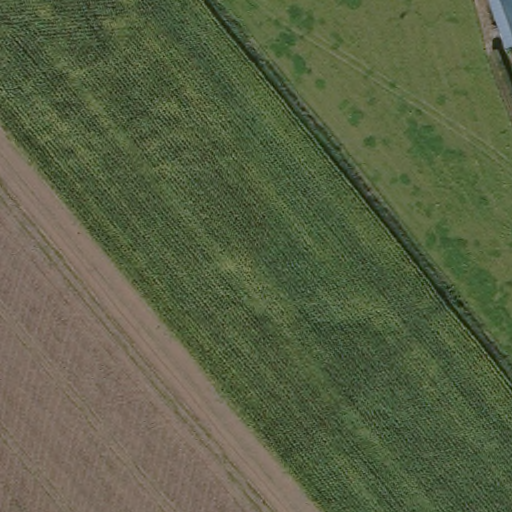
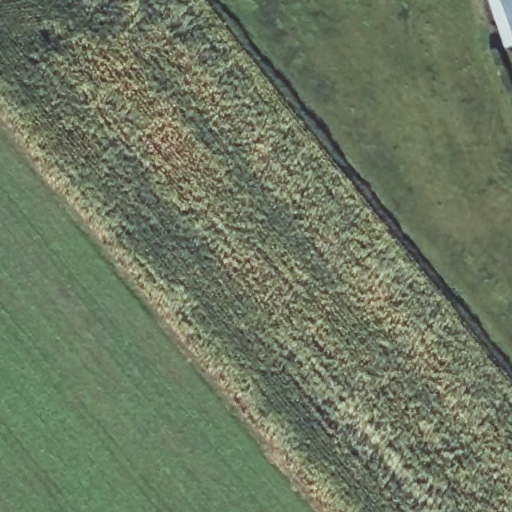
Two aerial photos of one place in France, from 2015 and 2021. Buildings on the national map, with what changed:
unchanged [(512,44),(505,46),(490,0),(512,0),(512,44)]

